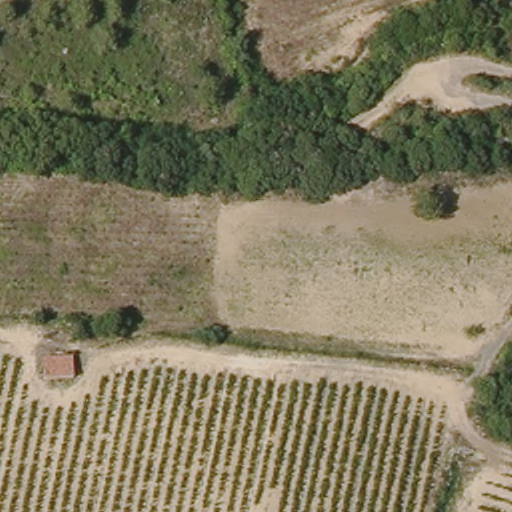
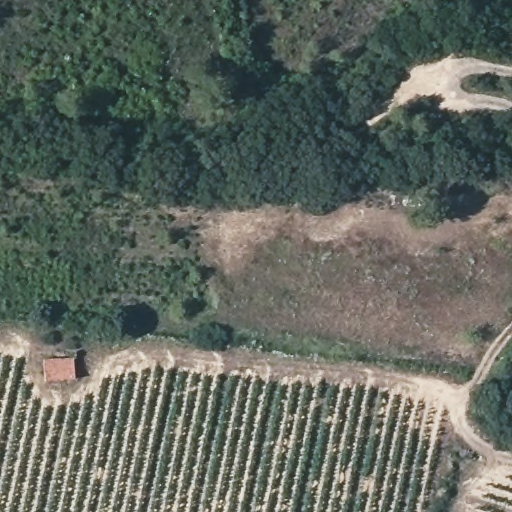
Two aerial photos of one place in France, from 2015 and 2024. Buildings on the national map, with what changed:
unchanged [(69,379),(42,379),(43,360),(70,360),(69,379)]

